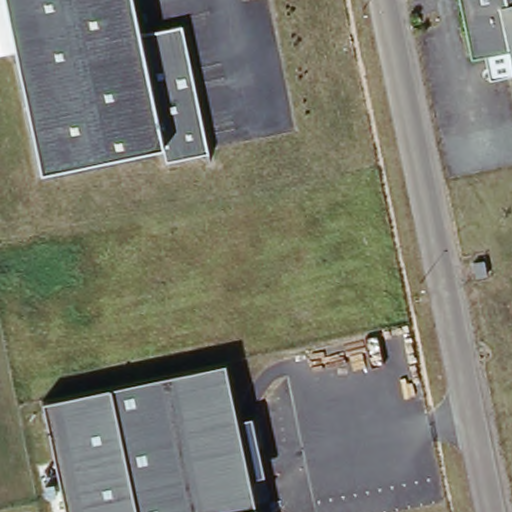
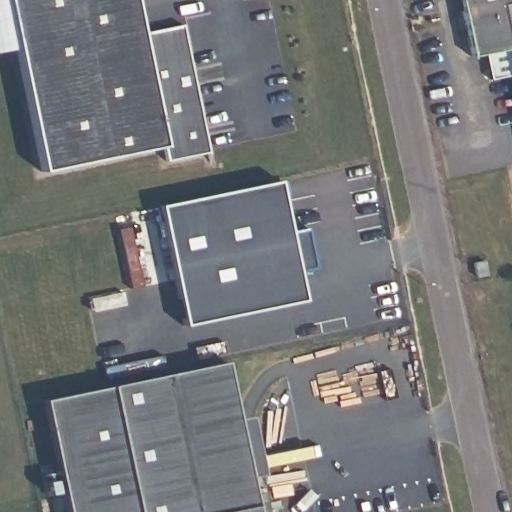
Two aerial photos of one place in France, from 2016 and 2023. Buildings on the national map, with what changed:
unchanged [(17,51),(0,55),(0,0),(6,0),(17,51)]
unchanged [(141,44),(184,35),(210,160),(166,166),(162,151),(42,176),(17,51),(6,0),(132,0),(141,44)]
unchanged [(510,53),(472,60),(458,0),(512,0),(512,65),(510,53)]
new [(277,180),(288,231),(306,228),(315,266),(295,269),(302,301),(182,324),(159,206),(277,180)]
unchanged [(256,512),(66,512),(42,399),(225,362),(256,512)]

